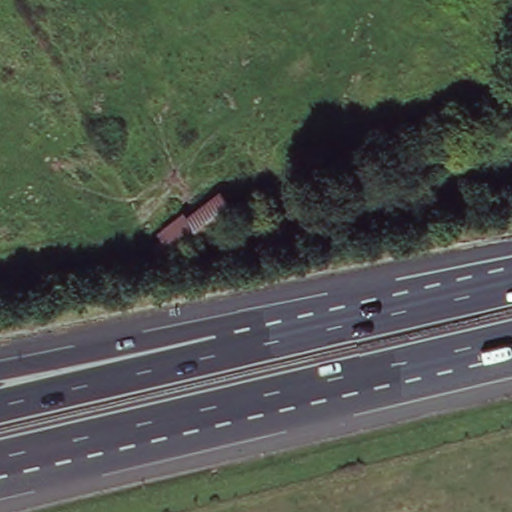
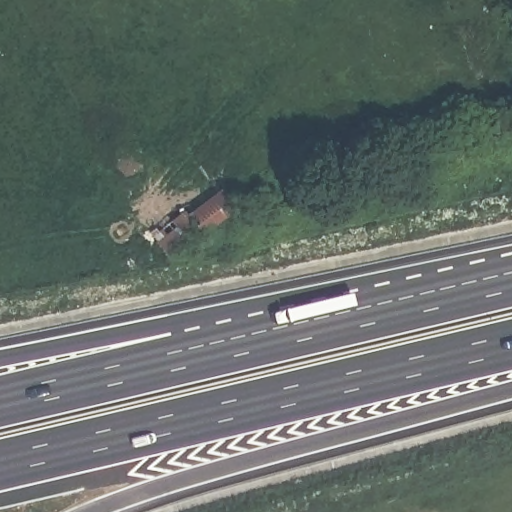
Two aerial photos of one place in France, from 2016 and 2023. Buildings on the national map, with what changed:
unchanged [(235,208),(166,255),(153,238),(222,191),(235,208)]

